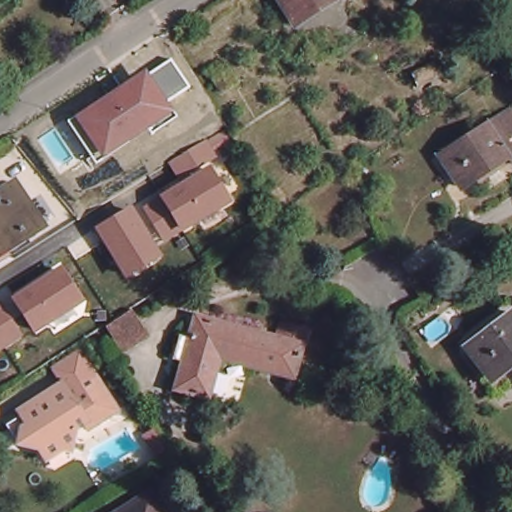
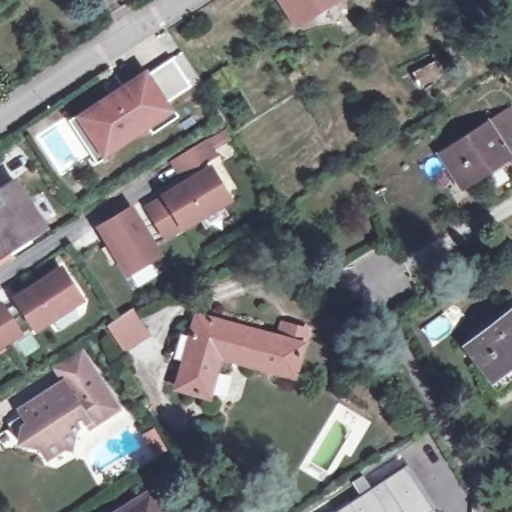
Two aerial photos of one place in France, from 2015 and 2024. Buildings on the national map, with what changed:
unchanged [(296,23),(282,0),(332,0),(296,23)]
unchanged [(152,135),(149,128),(96,164),(68,122),(146,70),(149,75),(171,60),(190,88),(168,103),(177,118),(152,135)]
unchanged [(441,76),(443,79),(421,89),(413,75),(438,61),(445,75),(441,76)]
unchanged [(459,188),(438,155),(497,117),(495,114),(506,106),(512,115),(512,161),(508,164),(505,159),(459,188)]
unchanged [(205,142),(214,158),(180,178),(171,162),(205,142)]
unchanged [(165,242),(143,208),(211,166),(232,202),(165,242)]
unchanged [(16,184),(44,227),(0,255),(0,193),(16,184)]
unchanged [(126,280),(96,229),(133,207),(163,257),(126,280)]
unchanged [(2,301),(9,310),(15,305),(11,297),(61,267),(83,302),(34,334),(23,318),(15,324),(22,335),(0,350),(0,302),(2,301)]
unchanged [(465,343),(512,307),(512,308),(512,366),(492,381),(487,373),(465,343)]
unchanged [(135,311),(148,331),(121,349),(108,328),(135,311)]
unchanged [(291,346),(294,334),(308,337),(297,382),(222,361),(210,403),(178,394),(186,364),(180,362),(185,345),(192,347),(199,321),(291,346)]
unchanged [(31,412),(72,384),(62,371),(88,352),(110,380),(128,408),(114,418),(100,427),(95,421),(86,428),(81,448),(73,446),(59,455),(48,440),(30,437),(20,421),(31,413),(31,412)]
unchanged [(378,382),(389,381),(390,396),(378,396),(378,382)]
new [(353,483),(364,475),(373,489),(406,467),(435,510),(432,512),(337,512),(362,496),(353,483)]
unchanged [(161,512),(126,512),(152,496),(161,512)]

